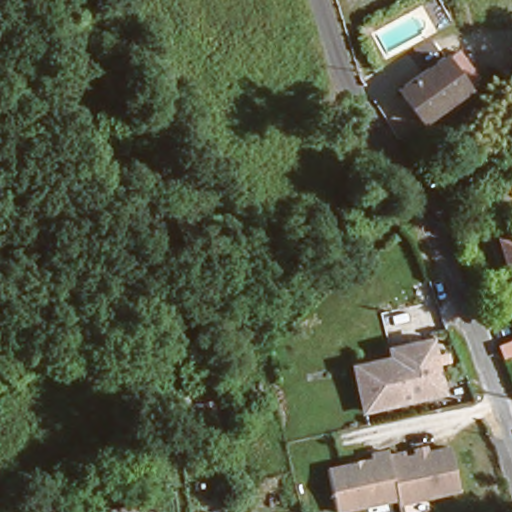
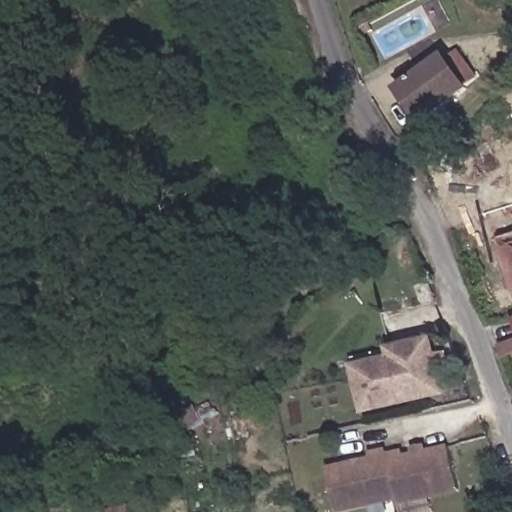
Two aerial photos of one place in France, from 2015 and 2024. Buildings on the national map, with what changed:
unchanged [(400,89),(447,50),(474,85),(428,124),(400,89)]
unchanged [(494,230),(512,223),(506,208),(512,206),(512,283),(494,230)]
unchanged [(421,340),(435,393),(356,411),(346,367),(384,359),(382,348),(421,340)]
unchanged [(327,466),(449,442),(459,490),(346,512),(336,512),(327,467),(327,466)]
unchanged [(118,507),(117,497),(140,492),(143,512),(106,512),(106,511),(118,507)]

